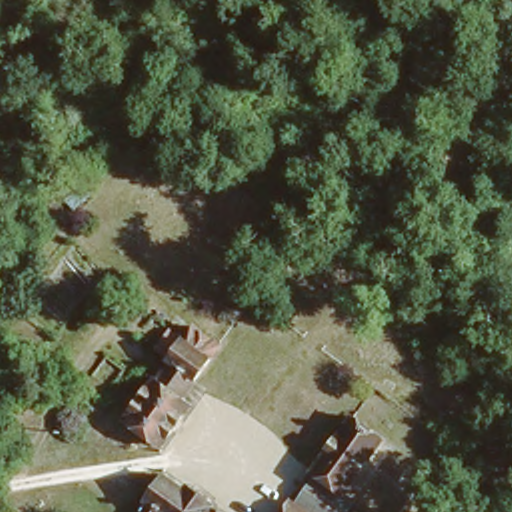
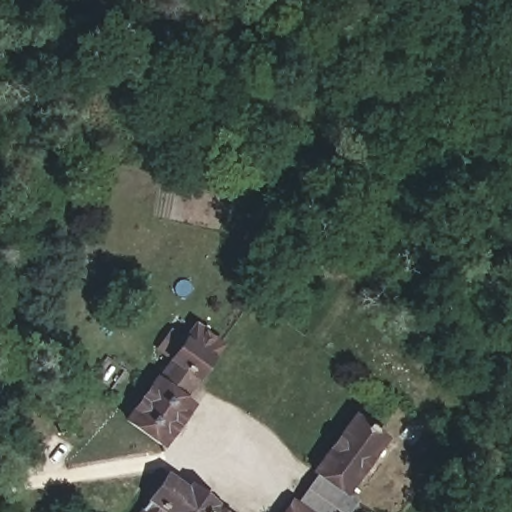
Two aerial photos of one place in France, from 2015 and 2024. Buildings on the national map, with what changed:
unchanged [(220,342),(187,396),(193,402),(169,442),(133,418),(167,360),(155,351),(168,331),(181,338),(189,325),(220,342)]
unchanged [(348,410),(386,434),(348,491),(310,470),(348,410)]
unchanged [(359,498),(350,512),(308,512),(290,501),(310,470),(348,491),(359,498)]
unchanged [(181,480),(190,486),(192,483),(206,492),(204,495),(211,500),(209,504),(223,512),(140,512),(150,496),(144,489),(151,477),(155,481),(162,472),(179,484),(181,480)]
unchanged [(283,512),(290,501),(308,512),(283,512)]

